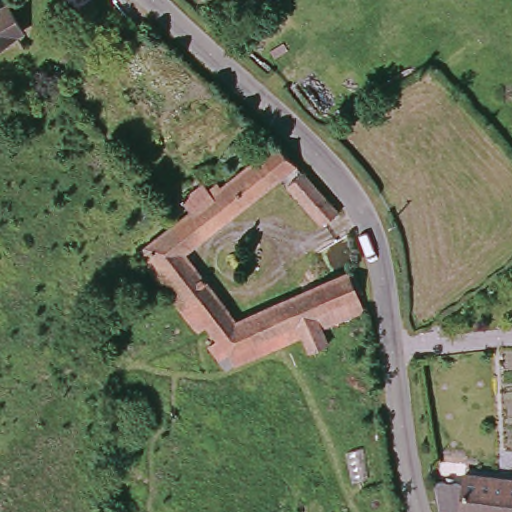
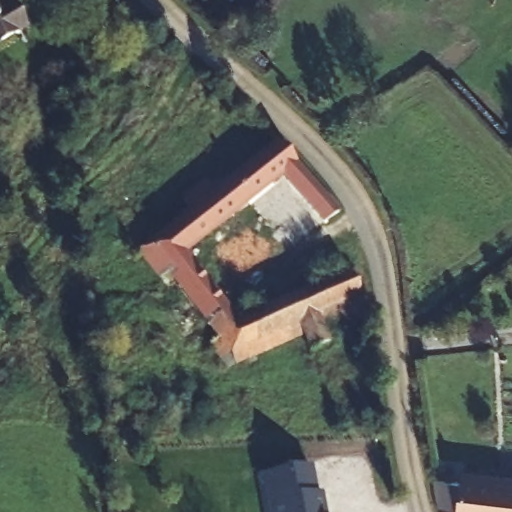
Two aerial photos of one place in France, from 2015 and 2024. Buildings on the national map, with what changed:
unchanged [(21,24),(0,39),(0,5),(6,1),(21,24)]
unchanged [(183,254),(241,325),(351,266),(363,286),(355,293),(364,307),(343,319),(324,328),(331,344),(313,354),(311,351),(302,338),(261,362),(249,368),(236,356),(228,362),(215,348),(216,347),(222,343),(209,327),(201,332),(185,312),(181,307),(173,296),(145,264),(141,260),(139,257),(157,241),(173,228),(180,222),(196,209),(185,195),(205,180),(206,179),(217,190),(253,161),(274,143),(280,139),(299,158),(183,254)]
unchanged [(341,206),(322,219),(291,183),(308,169),(341,206)]
new [(311,464),(316,492),(321,491),(325,512),(267,512),(259,474),(311,464)]
unchanged [(455,512),(459,466),(512,472),(512,512),(455,512)]

